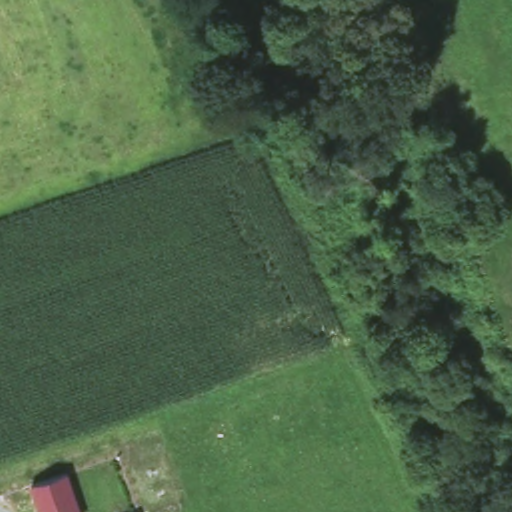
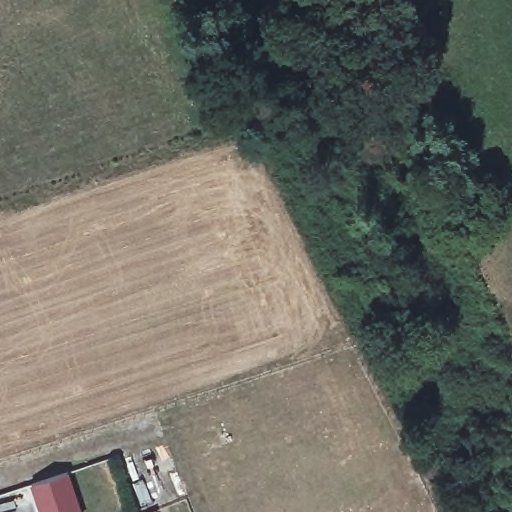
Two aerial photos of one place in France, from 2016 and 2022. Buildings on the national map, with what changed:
unchanged [(82,512),(39,512),(29,484),(67,472),(82,512)]
unchanged [(138,512),(140,511),(140,512),(138,512)]

